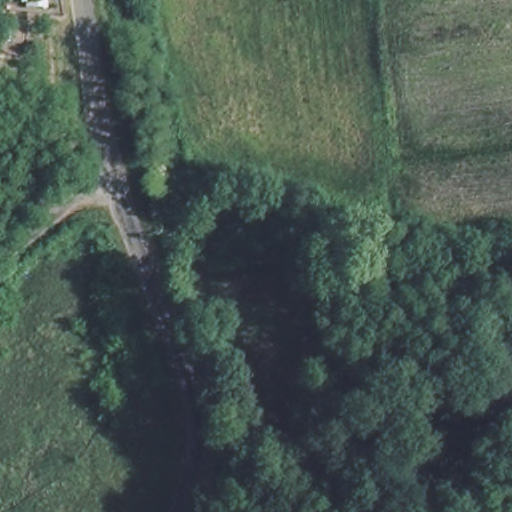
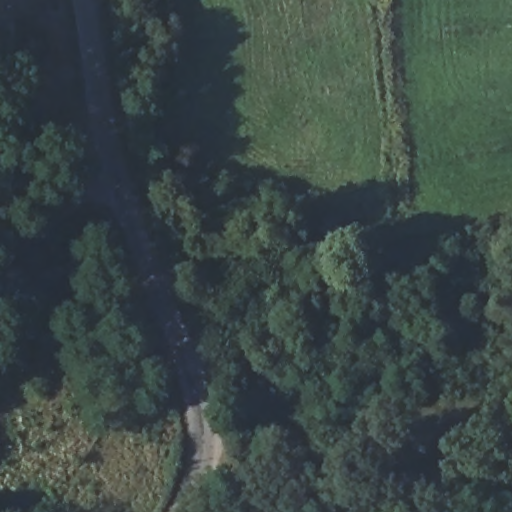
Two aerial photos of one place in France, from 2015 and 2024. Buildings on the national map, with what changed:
[]

